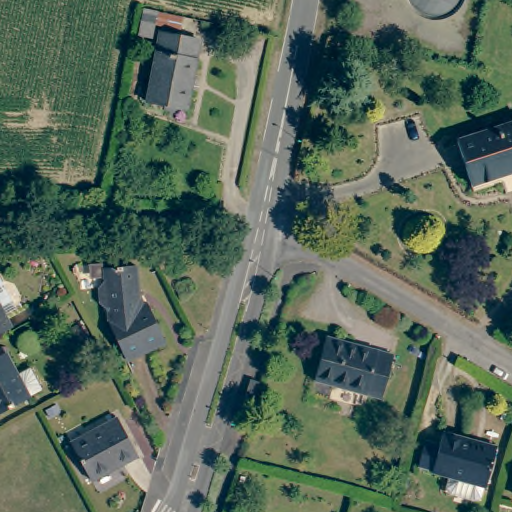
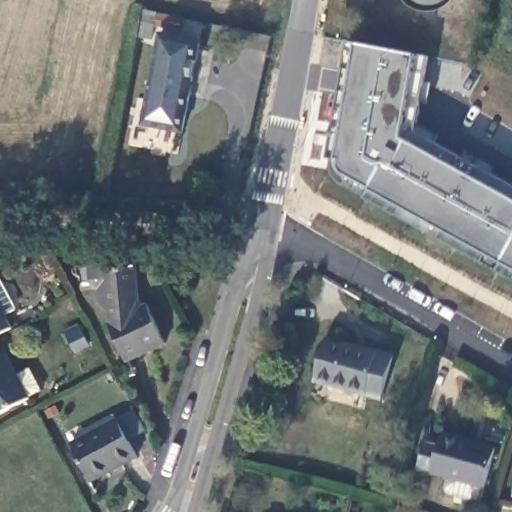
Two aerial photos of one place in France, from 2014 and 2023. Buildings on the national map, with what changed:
unchanged [(188,30),(185,45),(160,40),(157,51),(145,49),(149,29),(162,30),(162,24),(188,30)]
new [(395,217),(366,201),(367,200),(345,188),(338,182),(333,175),(333,163),(329,162),(349,44),(430,60),(417,136),(512,188),(512,282),(498,275),(503,267),(488,258),(483,266),(426,235),(431,227),(399,209),(395,217)]
unchanged [(207,54),(193,122),(152,113),(165,46),(207,54)]
demolished [(512,167),(496,172),(497,176),(461,185),(453,162),(447,145),(512,126),(512,167)]
unchanged [(138,265),(142,293),(141,302),(146,301),(167,339),(128,357),(108,322),(107,311),(98,306),(97,290),(105,282),(104,269),(138,265)]
unchanged [(0,338),(0,306),(13,332),(0,338)]
unchanged [(322,387),(326,373),(311,368),(323,327),(386,345),(374,387),(359,382),(355,396),(322,387)]
unchanged [(0,413),(0,359),(10,378),(22,372),(34,393),(23,401),(0,413)]
unchanged [(121,422),(140,458),(94,483),(74,447),(121,422)]
unchanged [(478,502),(449,494),(446,489),(449,480),(430,475),(431,472),(417,467),(423,444),(438,448),(442,435),(496,451),(485,490),(483,500),(478,502)]
unchanged [(262,512),(262,511),(268,512),(262,512)]

